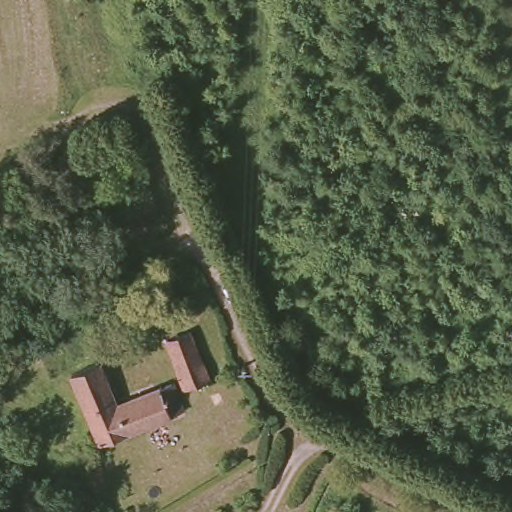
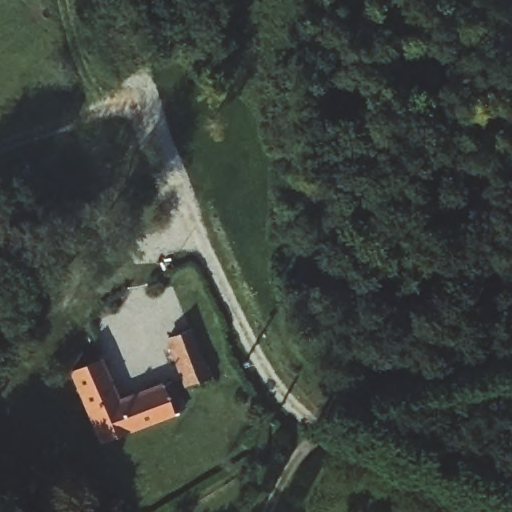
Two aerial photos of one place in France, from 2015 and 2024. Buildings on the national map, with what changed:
unchanged [(167,348),(191,339),(208,385),(185,395),(167,348)]
unchanged [(70,377),(100,365),(119,407),(172,387),(175,394),(185,416),(101,445),(70,377)]

